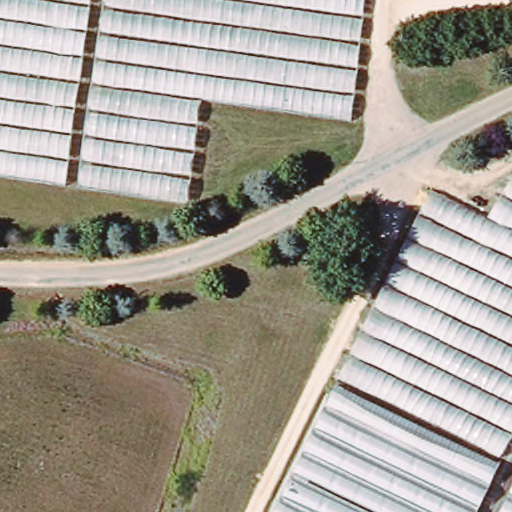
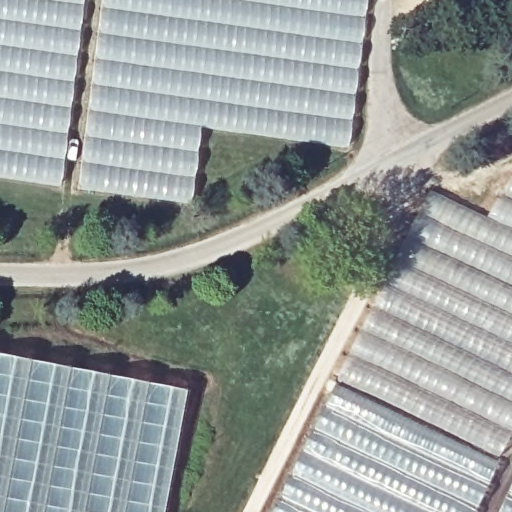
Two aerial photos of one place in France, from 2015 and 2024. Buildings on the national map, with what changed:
unchanged [(92,0),(68,186),(0,176),(0,0),(92,0)]
unchanged [(189,203),(82,187),(107,0),(368,0),(355,120),(205,99),(189,203)]
unchanged [(475,512),(279,512),(337,397),(440,195),(492,222),(512,186),(512,439),(502,456),(475,512)]
new [(188,387),(165,512),(0,512),(0,349),(188,387)]
unchanged [(512,478),(512,512),(495,512),(512,478)]

